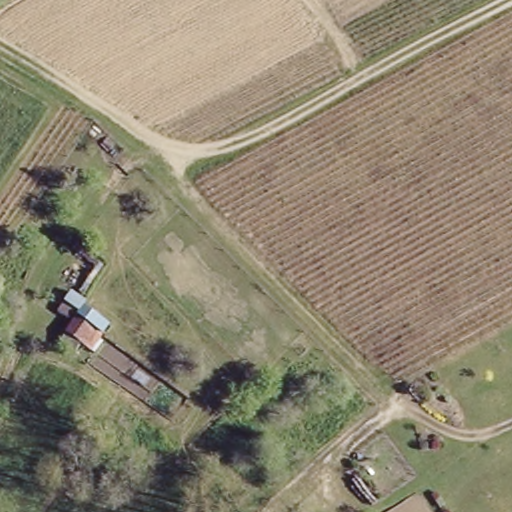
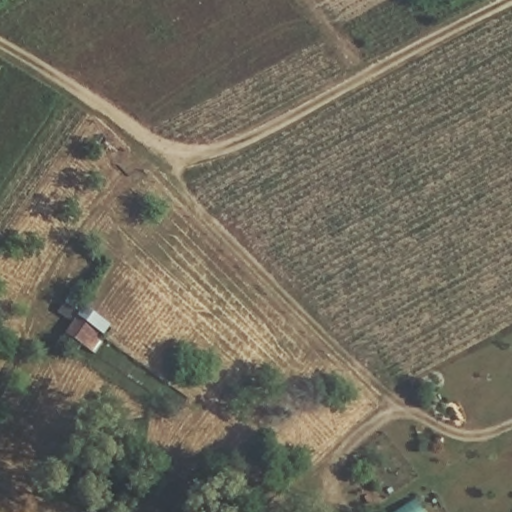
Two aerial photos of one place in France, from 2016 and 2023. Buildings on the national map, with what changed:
unchanged [(88,352),(79,346),(73,354),(59,344),(74,324),(57,312),(63,302),(79,313),(81,314),(79,317),(102,333),(88,352)]

